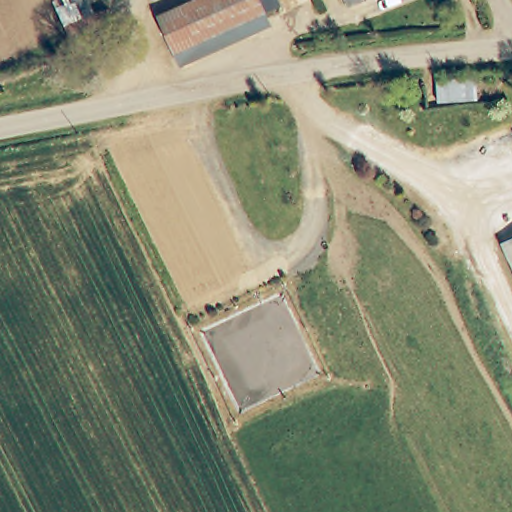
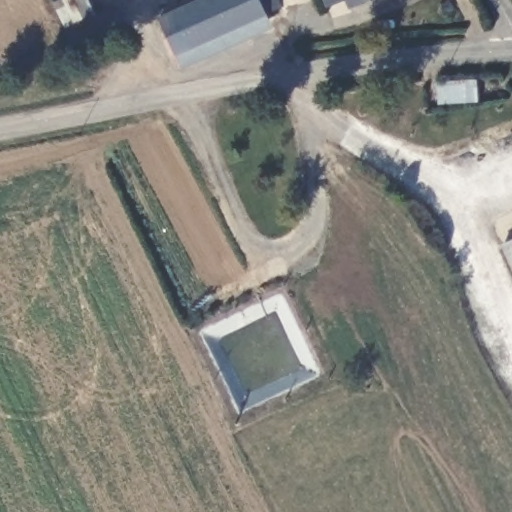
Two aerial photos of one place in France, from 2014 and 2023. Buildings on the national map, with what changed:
unchanged [(211,9),(207,0),(229,0),(220,4),(211,9)]
unchanged [(229,0),(262,0),(274,27),(228,47),(211,9),(220,4),(229,0)]
unchanged [(344,0),(361,0),(345,5),(344,0)]
unchanged [(228,47),(169,72),(152,35),(211,9),(228,47)]
unchanged [(512,269),(501,245),(512,240),(512,269)]

